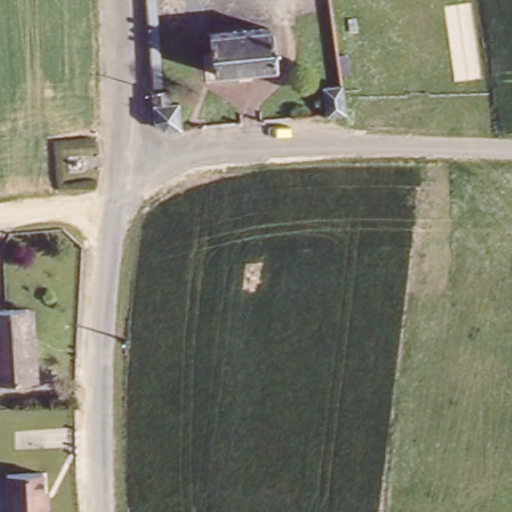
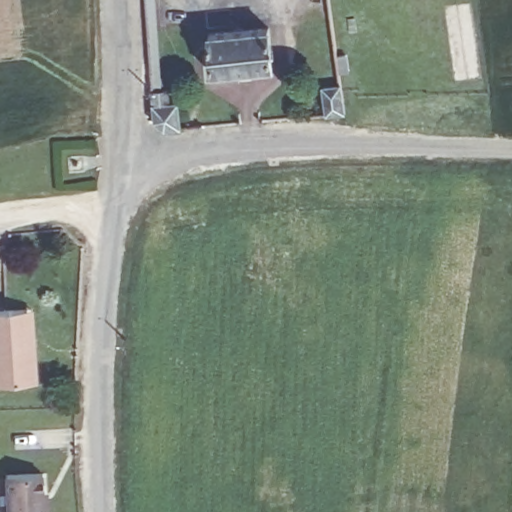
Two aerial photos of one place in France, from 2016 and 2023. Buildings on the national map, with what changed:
unchanged [(279,31),(284,74),(228,80),(223,37),(279,31)]
unchanged [(340,87),(344,117),(319,120),(316,90),(340,87)]
unchanged [(180,99),(183,130),(159,134),(156,100),(180,99)]
unchanged [(25,338),(32,338),(34,380),(0,381),(0,309),(23,307),(25,338)]
unchanged [(46,492),(52,491),(53,510),(33,512),(12,512),(8,465),(43,462),(46,492)]

